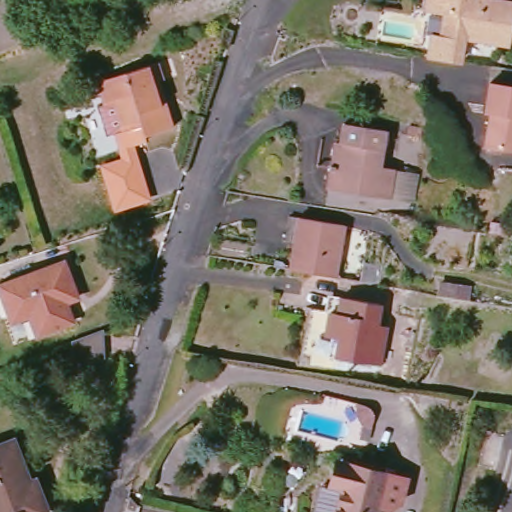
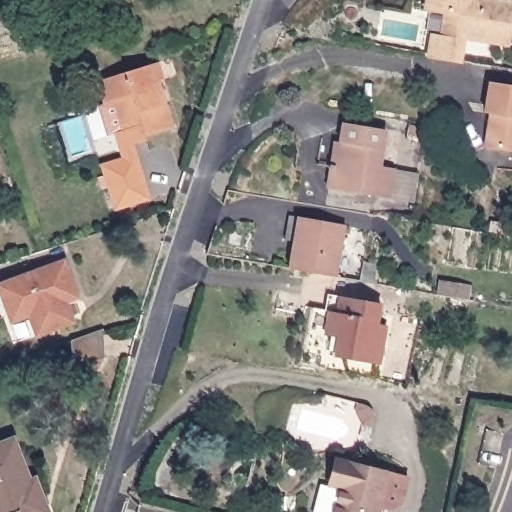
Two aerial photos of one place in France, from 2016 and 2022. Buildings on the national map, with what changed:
unchanged [(432,60),(434,42),(442,43),(446,17),(436,16),(422,15),(425,0),(480,0),(480,2),(479,6),(512,10),(512,35),(510,49),(465,44),(462,65),(432,60)]
unchanged [(150,134),(147,126),(126,132),(117,101),(107,104),(100,82),(162,65),(166,79),(163,80),(169,103),(176,126),(150,134)]
unchanged [(487,111),(492,84),(493,80),(512,84),(512,149),(488,145),(490,131),(492,117),(495,117),(495,112),(487,111)]
unchanged [(112,102),(117,101),(123,122),(126,132),(147,126),(150,134),(145,135),(147,142),(135,145),(151,201),(113,211),(99,165),(119,158),(112,134),(107,135),(100,106),(107,104),(112,102)]
unchanged [(387,131),(381,169),(393,170),(388,200),(325,190),(327,167),(330,144),(340,145),(343,125),(387,131)]
unchanged [(291,272),(300,220),(347,229),(337,280),(291,272)]
unchanged [(12,318),(3,321),(0,311),(0,284),(57,265),(71,301),(56,307),(62,325),(30,337),(25,323),(12,318)]
unchanged [(362,284),(365,265),(382,268),(378,287),(362,284)]
unchanged [(385,368),(340,361),(342,342),(333,340),(339,301),(385,308),(383,327),(392,330),(387,350),(385,368)]
unchanged [(65,347),(96,336),(98,365),(66,376),(63,347),(65,347)]
unchanged [(50,397),(52,405),(57,416),(43,421),(39,411),(35,403),(50,397)]
unchanged [(23,512),(22,510),(16,512),(0,512),(0,443),(17,435),(35,478),(40,476),(49,498),(53,508),(43,512),(23,512)]
unchanged [(345,461),(391,473),(410,478),(405,501),(393,508),(382,505),(381,512),(339,512),(320,507),(324,489),(343,494),(345,485),(339,483),(345,461)]

